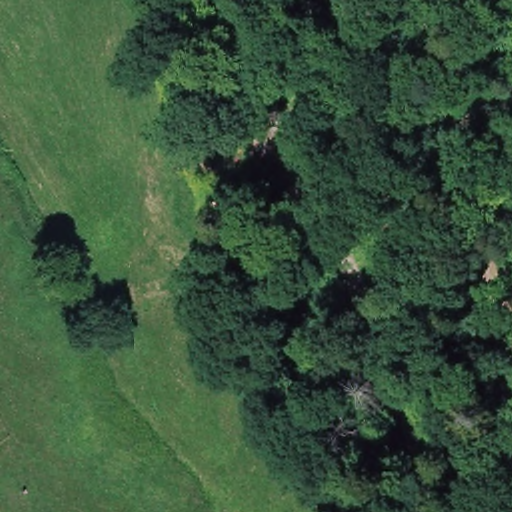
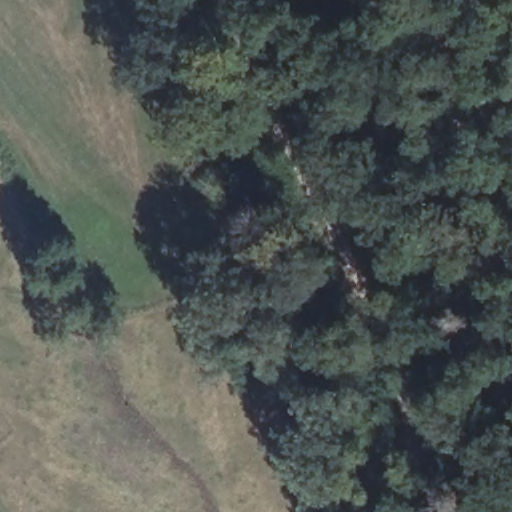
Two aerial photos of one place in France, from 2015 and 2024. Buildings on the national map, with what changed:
[]

